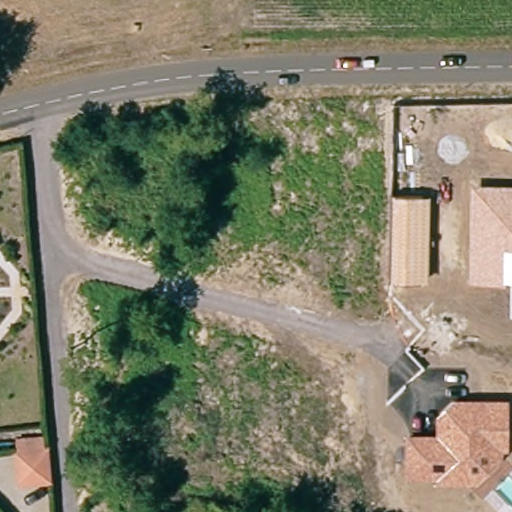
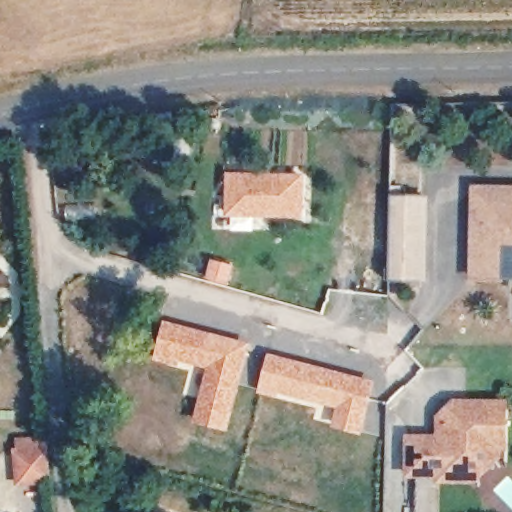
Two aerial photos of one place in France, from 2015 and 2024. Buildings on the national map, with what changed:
new [(227,217),(227,174),(304,175),(303,218),(227,217)]
unchanged [(512,283),(467,282),(471,185),(512,186),(512,283)]
unchanged [(430,196),(429,279),(390,280),(392,194),(430,196)]
new [(210,258),(233,265),(226,285),(203,279),(210,258)]
new [(163,319),(249,342),(227,432),(190,422),(203,371),(152,359),(163,319)]
new [(267,352),(375,379),(361,436),(328,427),(334,409),(255,393),(267,352)]
unchanged [(436,434),(436,414),(454,398),(509,399),(509,451),(504,451),(504,458),(476,484),(435,484),(435,479),(405,478),(405,433),(436,434)]
unchanged [(30,486),(27,448),(55,445),(59,482),(30,486)]

